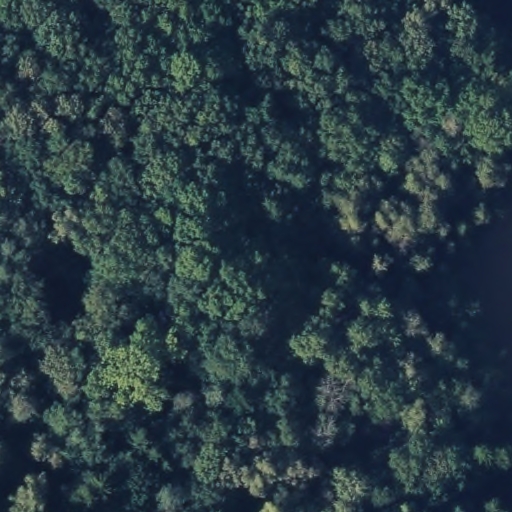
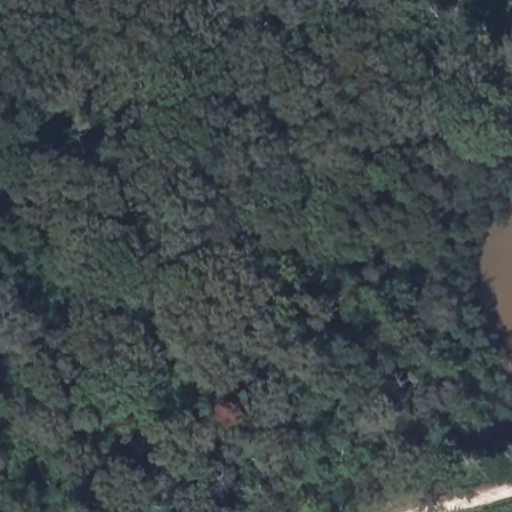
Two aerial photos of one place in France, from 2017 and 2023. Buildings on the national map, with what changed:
[]

